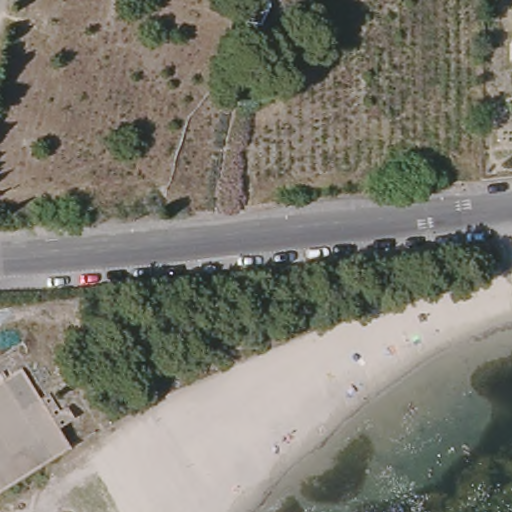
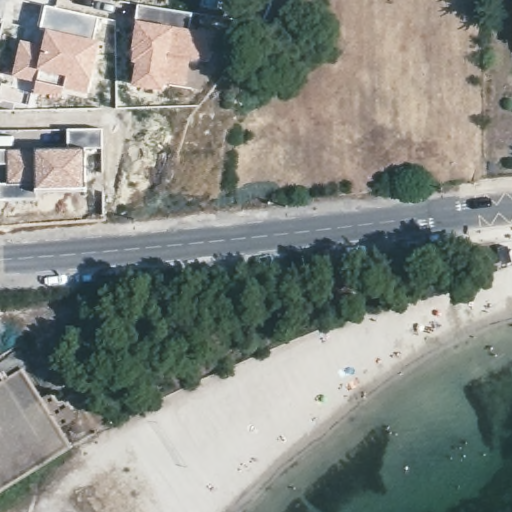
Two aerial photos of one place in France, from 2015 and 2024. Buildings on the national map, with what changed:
new [(201,5),(202,0),(220,0),(218,9),(201,5)]
new [(44,2),(108,18),(103,40),(45,29),(39,28),(44,2)]
new [(137,3),(193,13),(191,27),(220,32),(212,64),(191,61),(186,86),(166,84),(165,91),(131,84),(133,63),(131,62),(135,19),(137,3)]
new [(20,39),(41,43),(45,29),(103,40),(88,95),(61,89),(60,96),(33,92),(35,82),(12,77),(20,39)]
new [(66,147),(66,128),(102,128),(103,148),(85,148),(86,190),(36,190),(36,199),(0,200),(0,183),(7,183),(6,164),(0,164),(0,136),(11,136),(8,148),(66,147)]
unchanged [(0,366),(14,357),(23,371),(18,374),(36,404),(43,400),(45,399),(55,416),(63,412),(69,423),(53,433),(66,452),(0,494),(0,366)]

